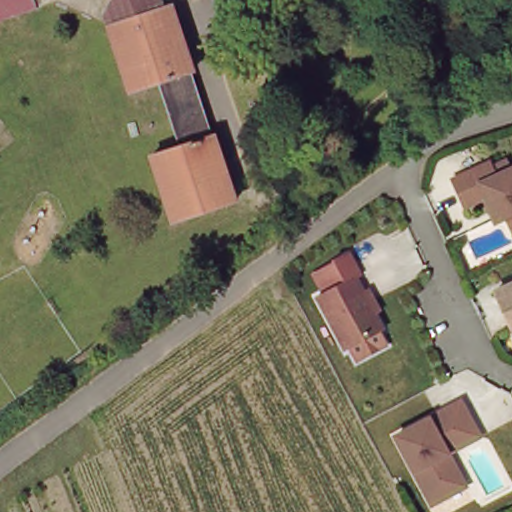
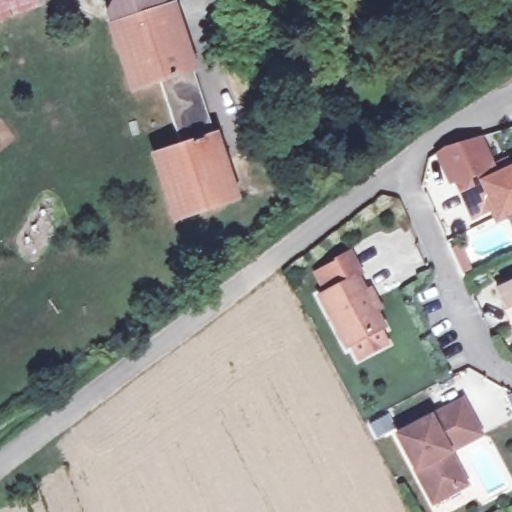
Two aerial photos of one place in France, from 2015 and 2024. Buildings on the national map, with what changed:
unchanged [(7,0),(0,2),(0,0),(7,0)]
unchanged [(33,0),(0,11),(0,2),(7,0),(33,0)]
unchanged [(179,141),(159,81),(142,86),(132,90),(110,20),(118,17),(111,0),(162,0),(162,3),(170,0),(235,198),(183,215),(175,218),(153,150),(161,147),(179,141)]
new [(445,148),(481,138),(492,164),(455,180),(451,182),(439,153),(445,148)]
unchanged [(488,197),(467,207),(455,180),(492,164),(495,172),(509,166),(512,171),(512,170),(512,227),(507,216),(499,219),(495,211),(488,197)]
unchanged [(347,351),(342,340),(335,343),(308,290),(317,286),(308,269),(340,249),(351,269),(347,272),(353,285),(358,282),(369,303),(364,305),(373,323),(367,326),(373,338),(347,351)]
unchanged [(492,287),(512,278),(512,325),(508,327),(492,287)]
unchanged [(452,490),(425,504),(390,436),(455,402),(470,430),(473,436),(442,453),(458,486),(452,490)]

